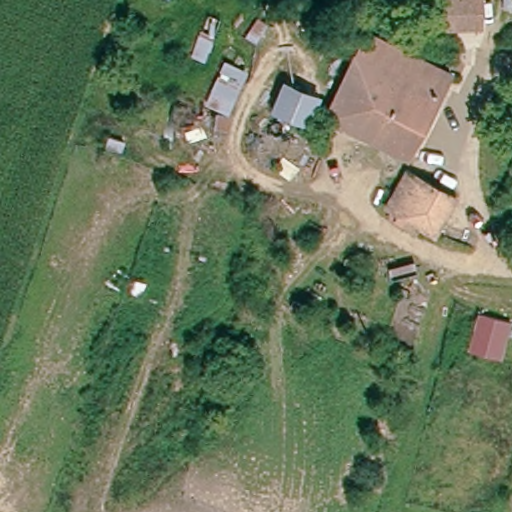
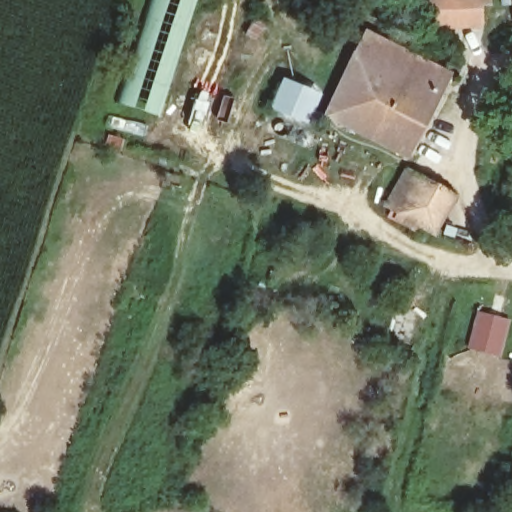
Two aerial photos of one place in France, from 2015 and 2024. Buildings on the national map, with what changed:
new [(150,0),(177,0),(158,50),(155,50),(134,108),(117,103),(150,0)]
new [(158,50),(177,0),(197,0),(158,116),(141,110),(158,50)]
unchanged [(477,22),(431,23),(430,0),(476,0),(477,22)]
unchanged [(324,124),(363,35),(451,75),(409,163),(328,126),(324,124)]
unchanged [(268,113),(280,84),(315,100),(303,127),(268,113)]
unchanged [(386,215),(406,175),(458,201),(437,240),(386,215)]
new [(477,310),(511,320),(501,357),(467,348),(477,310)]

